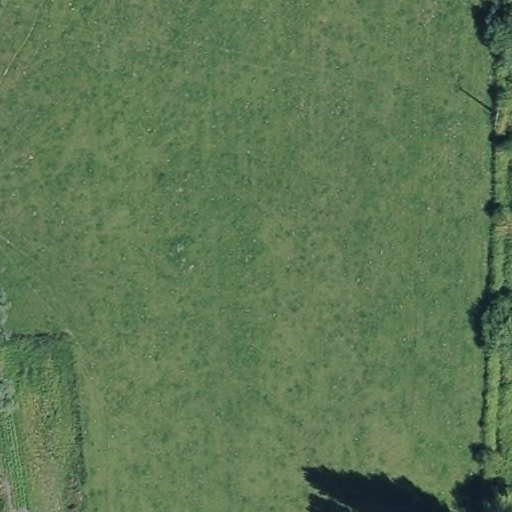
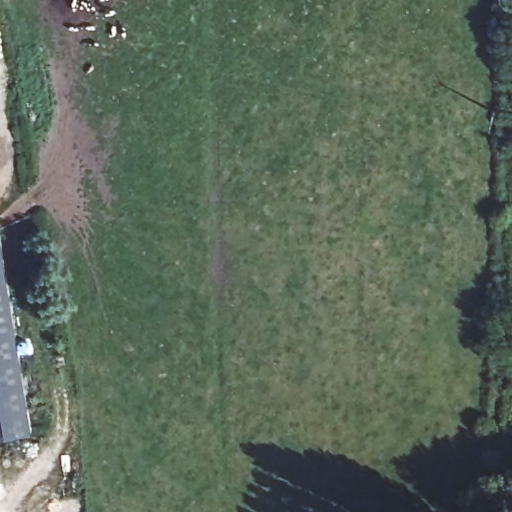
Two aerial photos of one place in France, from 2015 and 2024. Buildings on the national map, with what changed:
new [(33,432),(0,437),(0,229),(1,229),(33,432)]

